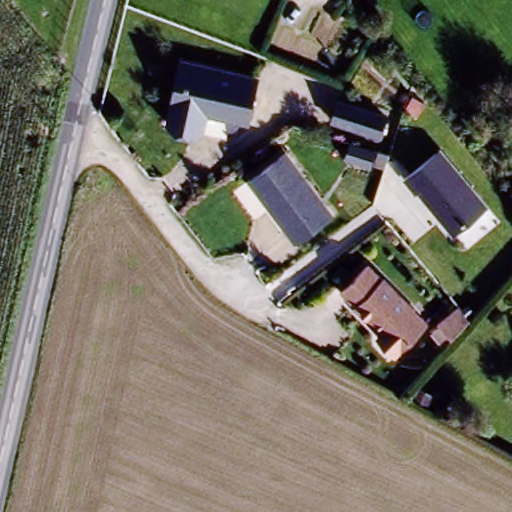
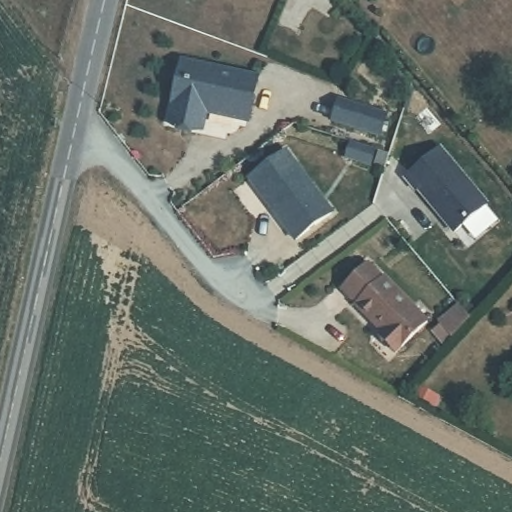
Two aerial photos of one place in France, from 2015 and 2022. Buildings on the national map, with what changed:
unchanged [(164,120),(181,59),(256,80),(245,124),(202,111),(199,130),(190,129),(164,120)]
unchanged [(338,104),(387,118),(381,138),(332,124),(338,104)]
unchanged [(374,146),(372,159),(346,154),(348,139),(374,146)]
unchanged [(247,177),(285,150),(328,214),(291,240),(247,177)]
unchanged [(450,237),(416,192),(412,194),(403,180),(438,151),(485,210),(450,237)]
unchanged [(384,337),(341,292),(370,265),(430,323),(398,356),(381,339),(384,337)]
unchanged [(437,318),(457,303),(466,314),(443,339),(433,328),(437,318)]

